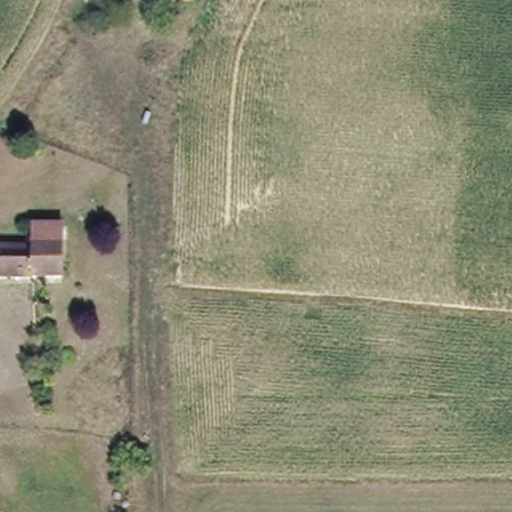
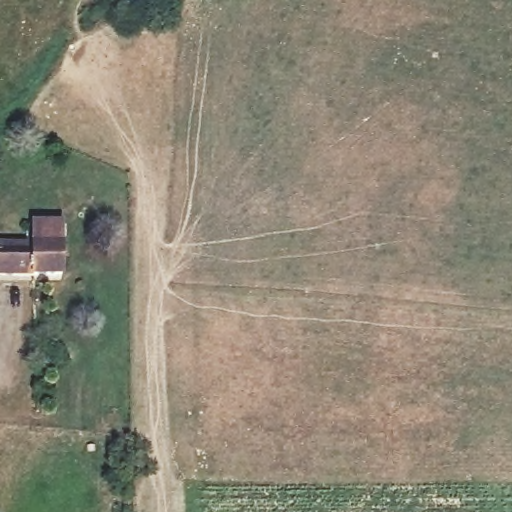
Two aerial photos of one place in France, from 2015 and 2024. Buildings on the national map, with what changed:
unchanged [(34,269),(0,269),(0,240),(31,239),(31,215),(58,214),(59,268),(34,269)]

